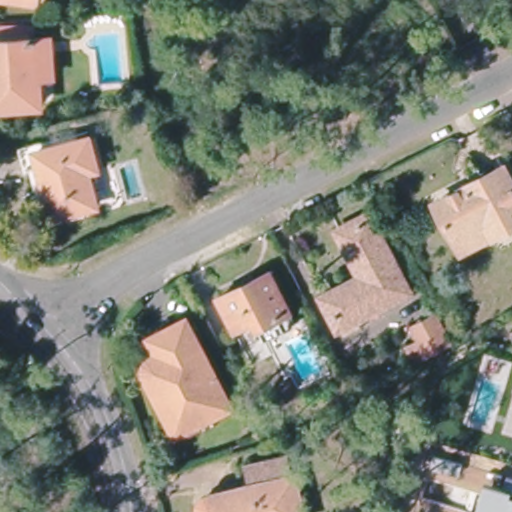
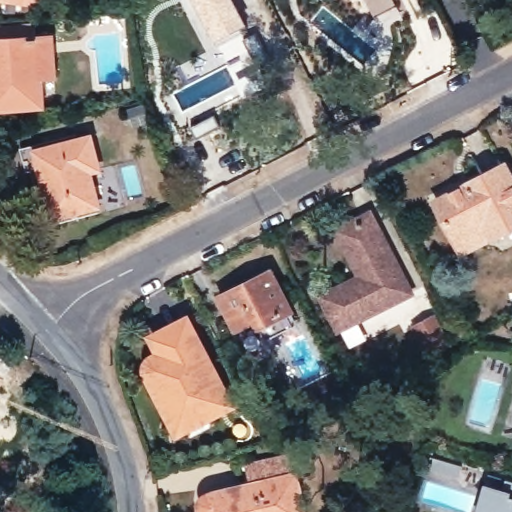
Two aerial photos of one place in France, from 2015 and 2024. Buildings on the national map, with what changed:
unchanged [(35,4),(0,0),(36,0),(35,4)]
new [(247,24),(215,42),(194,2),(192,0),(236,0),(247,24)]
new [(396,6),(373,16),(365,0),(393,0),(396,6)]
unchanged [(23,25),(25,39),(47,37),(50,65),(50,76),(35,77),(36,105),(0,108),(0,27),(23,25)]
unchanged [(89,137),(97,168),(88,172),(97,206),(55,217),(36,153),(89,137)]
unchanged [(438,202),(505,169),(512,182),(512,230),(497,238),(466,254),(458,240),(438,202)]
unchanged [(372,216),(412,293),(342,328),(326,296),(362,277),(340,231),(372,216)]
unchanged [(255,356),(246,338),(237,321),(221,291),(271,265),(298,317),(266,333),(273,347),(255,356)]
unchanged [(160,388),(155,375),(154,370),(154,364),(157,358),(164,354),(157,339),(193,320),(237,406),(215,417),(183,433),(160,388)]
unchanged [(408,352),(421,345),(415,332),(438,320),(451,346),(415,364),(408,352)]
unchanged [(211,510),(205,507),(201,502),(202,495),(205,490),(231,484),(252,478),(295,469),(305,512),(222,512),(221,508),(211,510)]
unchanged [(505,476),(512,478),(512,512),(475,512),(483,482),(500,488),(505,476)]

